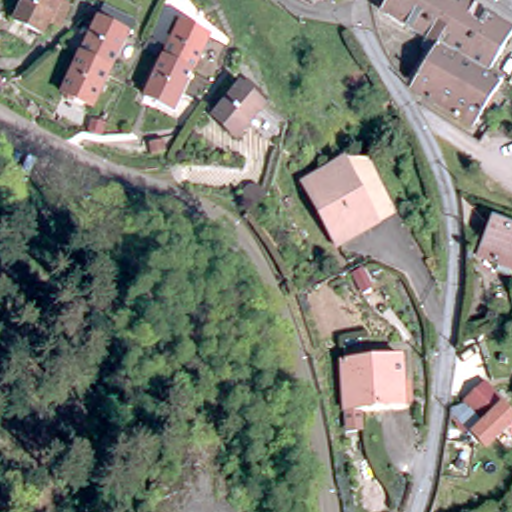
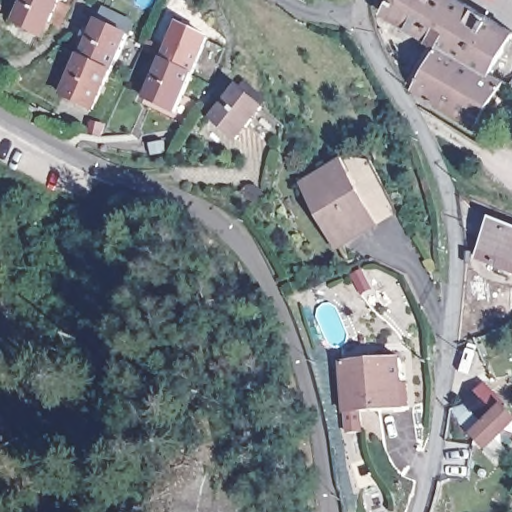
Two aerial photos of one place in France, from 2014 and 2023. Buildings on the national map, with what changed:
unchanged [(49,21),(43,34),(13,18),(23,0),(62,0),(70,4),(59,26),(49,21)]
unchanged [(380,13),(385,0),(454,0),(512,34),(487,74),(499,82),(473,128),(409,88),(434,46),(380,13)]
unchanged [(79,58),(95,24),(102,12),(132,26),(126,38),(109,74),(79,58)]
unchanged [(179,25),(209,40),(191,76),(162,60),(179,25)]
unchanged [(92,110),(61,93),(79,58),(109,74),(92,110)]
unchanged [(191,76),(173,114),(144,99),(162,60),(191,76)]
unchanged [(399,121),(377,132),(370,122),(357,130),(332,90),(367,69),(399,121)]
unchanged [(261,105),(237,139),(211,121),(235,87),(261,105)]
unchanged [(47,126),(50,119),(60,124),(56,131),(47,126)]
unchanged [(158,142),(162,156),(148,161),(144,147),(158,142)]
unchanged [(322,169),(340,159),(347,171),(376,220),(337,242),(305,185),(325,172),(322,169)]
unchanged [(512,227),(512,266),(480,257),(490,221),(512,227)]
unchanged [(406,406),(395,406),(342,408),(340,360),(398,357),(400,384),(405,383),(406,406)]
unchanged [(487,383),(504,403),(500,406),(512,419),(512,423),(500,433),(488,419),(482,422),(465,402),(487,383)]

